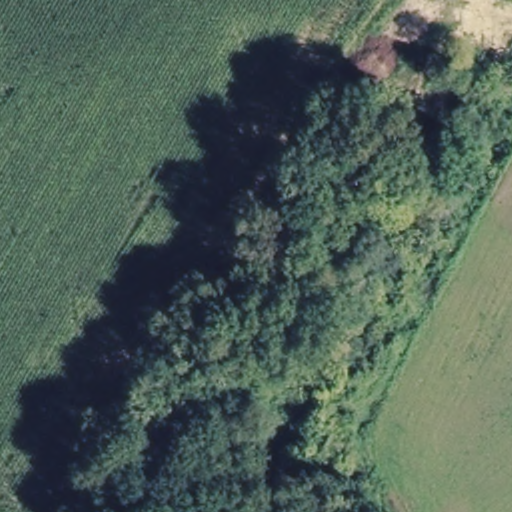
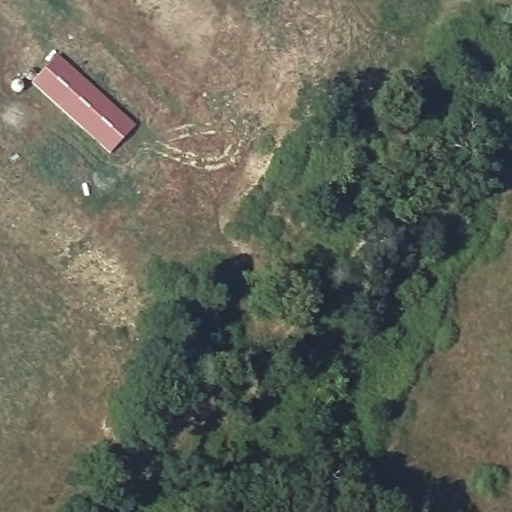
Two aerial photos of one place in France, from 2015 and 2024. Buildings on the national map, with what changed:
new [(24,79),(49,50),(129,119),(104,148),(24,79)]

